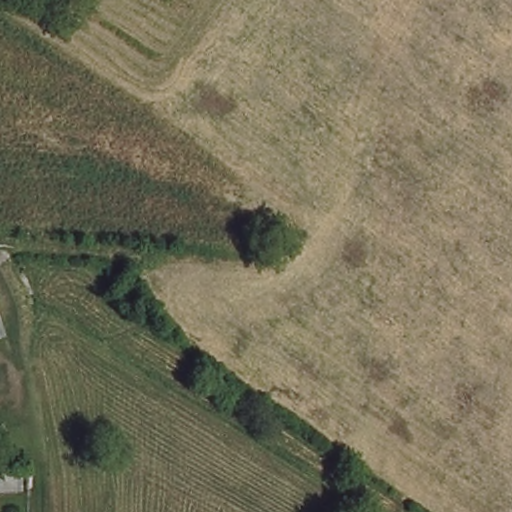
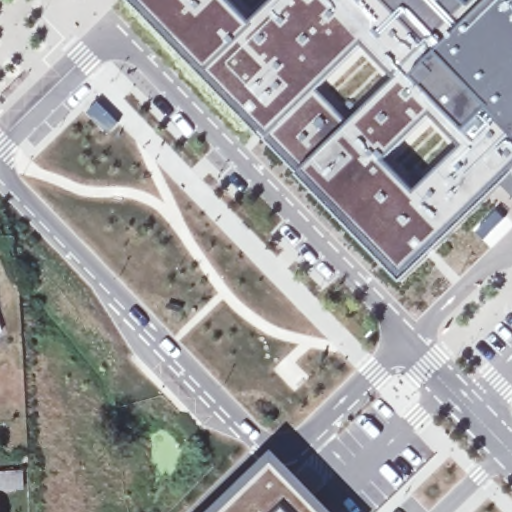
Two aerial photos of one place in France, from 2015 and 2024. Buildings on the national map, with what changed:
new [(501,169),(396,275),(130,0),(223,0),(245,24),(271,0),(464,0),(467,3),(469,0),(512,0),(512,159),(501,169)]
new [(512,159),(512,180),(501,169),(512,159)]
unchanged [(0,339),(0,331),(2,338),(0,339)]
new [(261,469),(304,512),(218,512),(261,469)]
unchanged [(20,495),(0,500),(0,477),(17,476),(20,495)]

